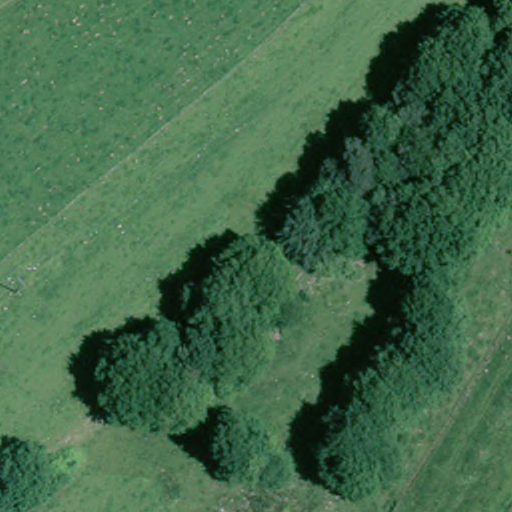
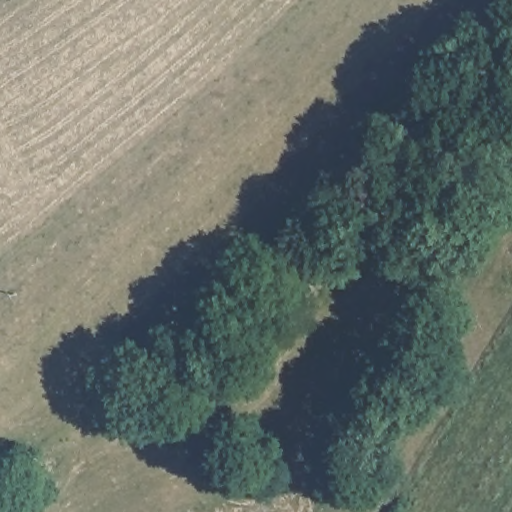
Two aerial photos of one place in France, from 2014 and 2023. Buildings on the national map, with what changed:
[]

